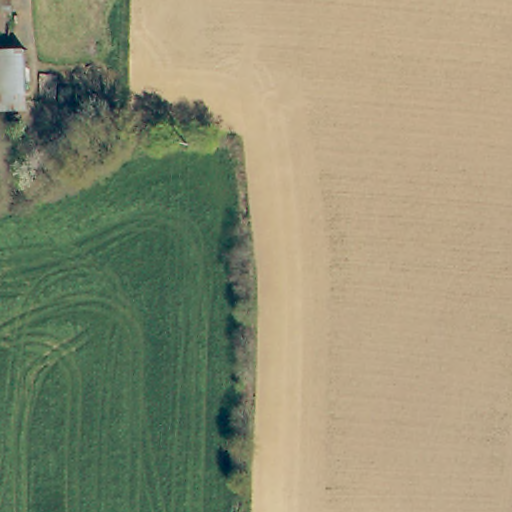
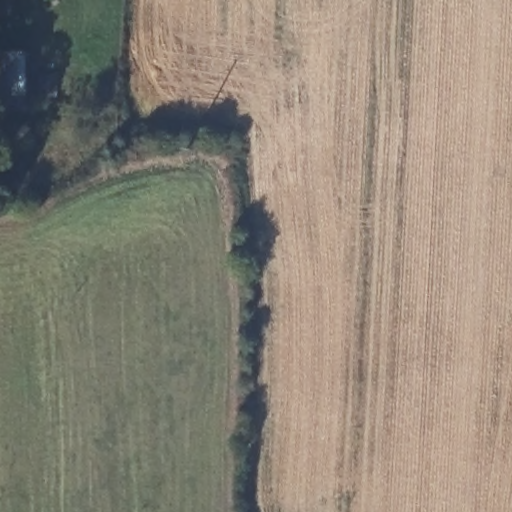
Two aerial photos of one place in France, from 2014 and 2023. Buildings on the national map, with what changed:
unchanged [(0,57),(24,57),(24,96),(0,96),(0,57)]

